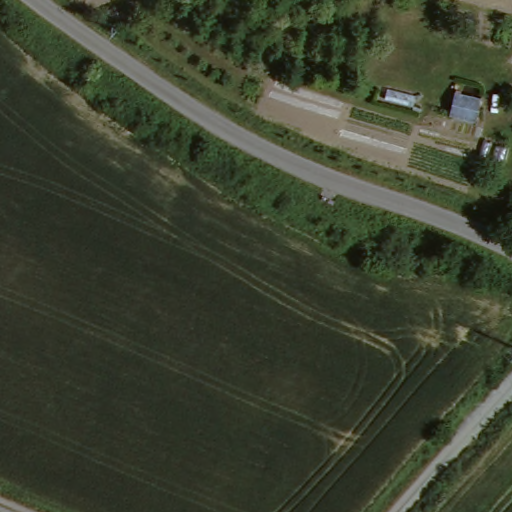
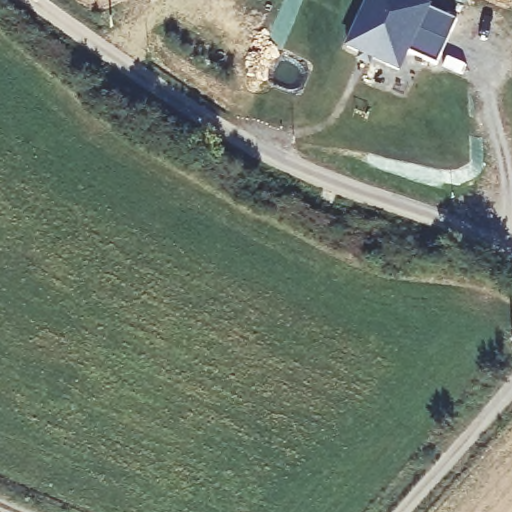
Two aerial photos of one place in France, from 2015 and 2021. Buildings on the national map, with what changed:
new [(409,50),(400,69),(346,46),(367,0),(422,0),(432,4),(430,8),(457,21),(437,64),(409,50)]
unchanged [(475,117),(451,113),(456,86),(481,90),(475,117)]

